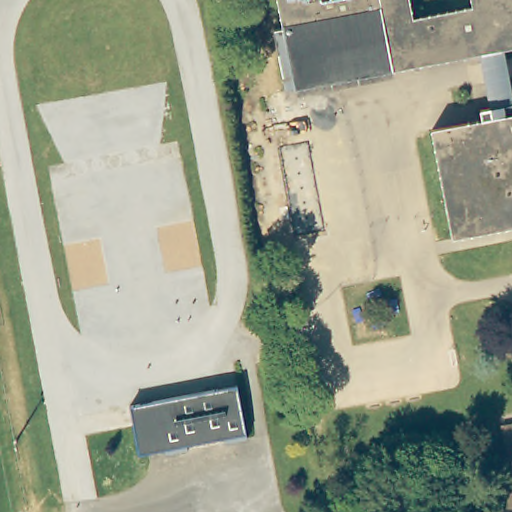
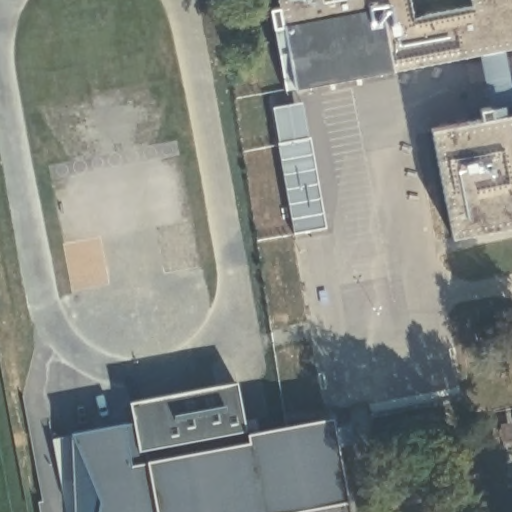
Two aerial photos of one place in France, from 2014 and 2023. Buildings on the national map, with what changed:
unchanged [(243,0),(263,0),(266,23),(247,27),(243,0)]
unchanged [(491,106),(480,52),(294,88),(294,87),(286,88),(275,29),(282,28),(278,0),(512,0),(512,46),(502,48),(512,98),(512,225),(455,237),(433,129),(484,119),(481,108),(491,106)]
unchanged [(303,104),(309,139),(311,139),(327,229),(295,234),(273,109),(303,104)]
unchanged [(237,389),(245,435),(246,438),(223,442),(223,438),(185,445),(186,448),(169,451),(163,452),(163,448),(137,453),(129,408),(237,389)]
new [(72,438),(124,428),(131,468),(148,465),(248,447),(246,438),(334,422),(350,505),(352,512),(100,512),(101,503),(72,438)]

